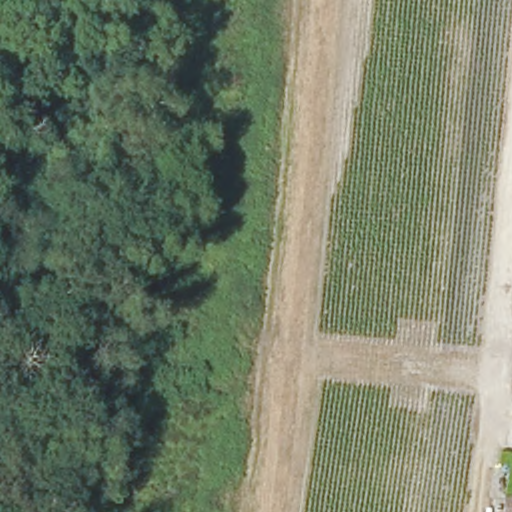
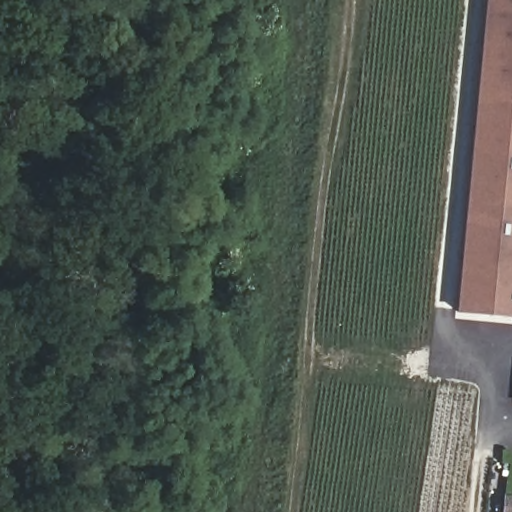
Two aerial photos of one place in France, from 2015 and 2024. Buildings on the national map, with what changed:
new [(512,322),(455,314),(485,0),(512,0),(512,322)]
unchanged [(512,494),(512,512),(504,512),(506,493),(512,494)]

